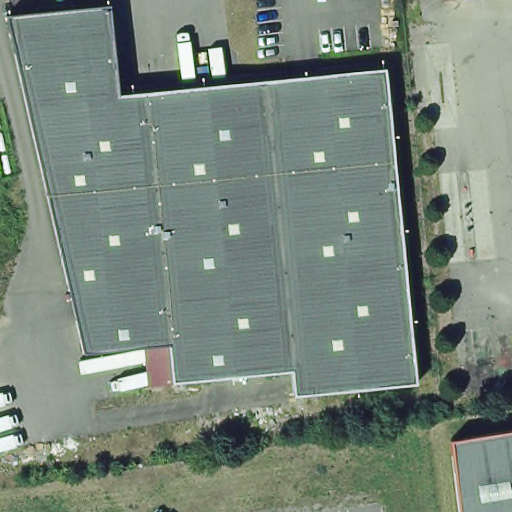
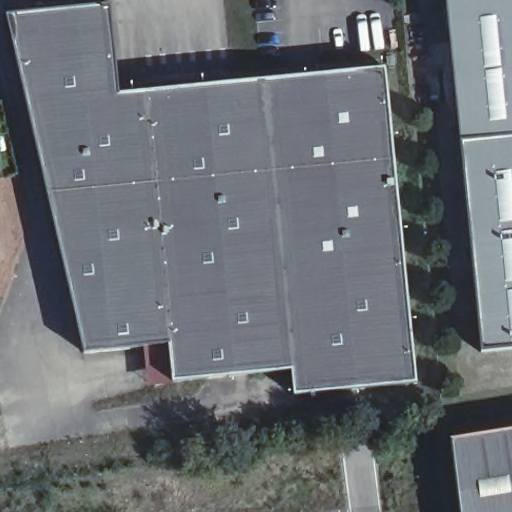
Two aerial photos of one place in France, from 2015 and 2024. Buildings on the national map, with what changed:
new [(444,0),(512,0),(512,137),(459,142),(444,0)]
unchanged [(30,12),(29,6),(61,3),(62,9),(105,5),(114,95),(235,82),(235,75),(281,70),(282,78),(317,75),(317,66),(372,61),(372,69),(380,68),(411,383),(288,395),(285,371),(167,382),(162,345),(79,353),(0,15),(30,12)]
new [(512,137),(512,350),(481,353),(459,142),(512,137)]
unchanged [(449,440),(512,429),(512,512),(458,512),(449,440)]

